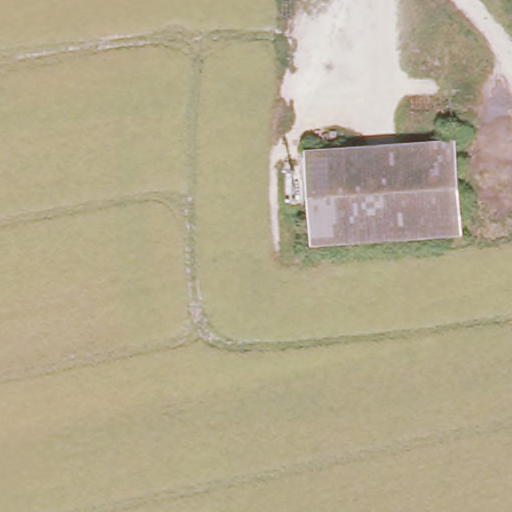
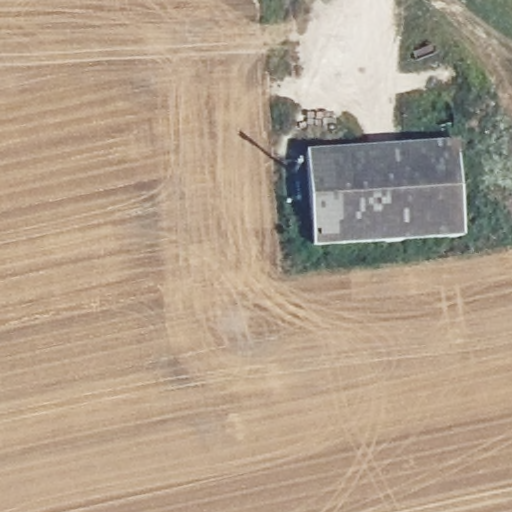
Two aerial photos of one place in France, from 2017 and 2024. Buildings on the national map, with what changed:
unchanged [(454,140),(462,235),(315,245),(307,150),(454,140)]

